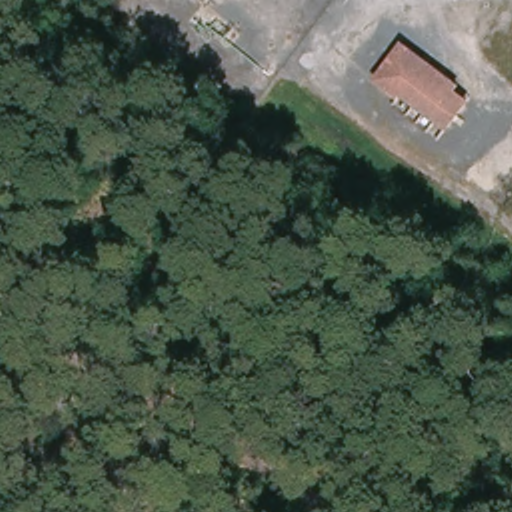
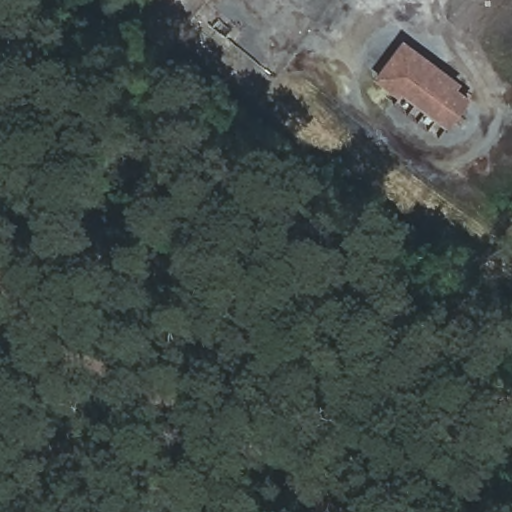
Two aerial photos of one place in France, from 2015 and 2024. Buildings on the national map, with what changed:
unchanged [(403,91),(400,95),(380,80),(383,75),(401,51),(405,46),(458,86),(454,91),(468,102),(450,125),(403,91)]

